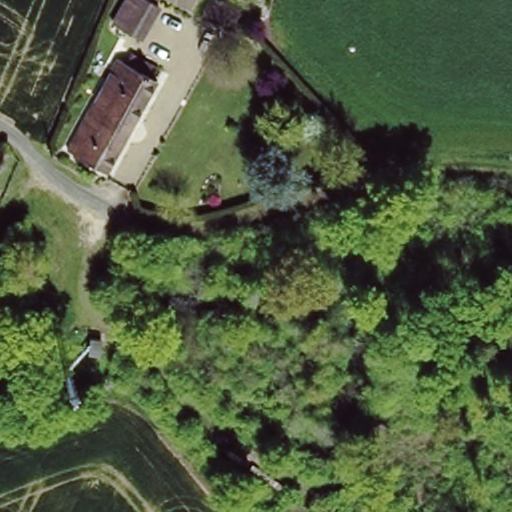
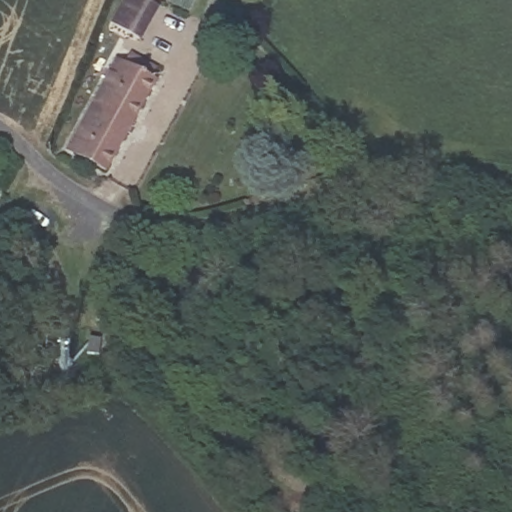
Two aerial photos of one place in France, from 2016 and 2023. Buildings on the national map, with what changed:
unchanged [(145,41),(116,27),(128,0),(155,0),(163,5),(145,41)]
unchanged [(115,65),(123,70),(131,59),(158,76),(152,85),(157,88),(105,179),(65,159),(115,65)]
unchanged [(14,153),(9,181),(0,179),(0,150),(14,153)]
unchanged [(94,343),(106,344),(105,360),(93,359),(94,343)]

